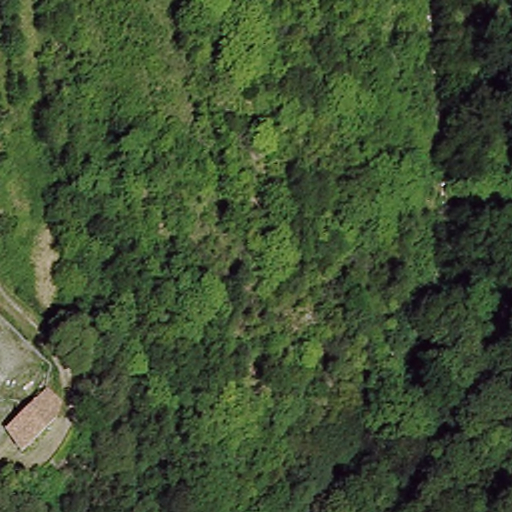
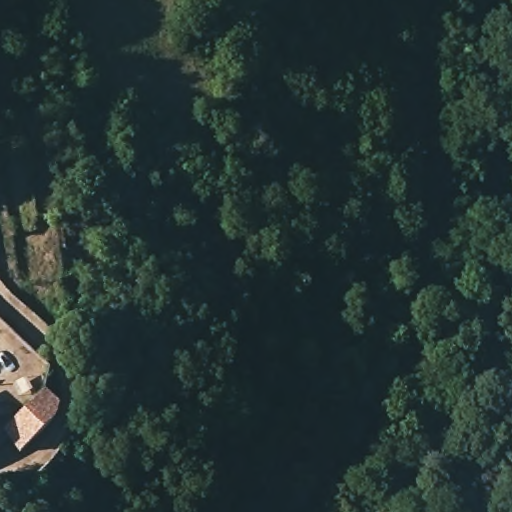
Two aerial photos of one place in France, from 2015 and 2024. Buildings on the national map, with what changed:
unchanged [(0,433),(0,432),(43,397),(61,415),(53,435),(15,459),(0,433)]

